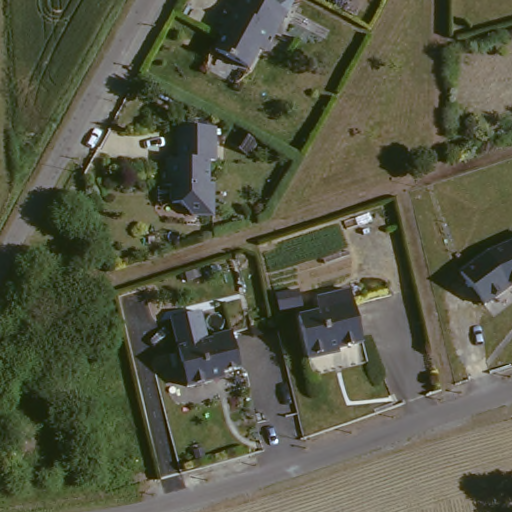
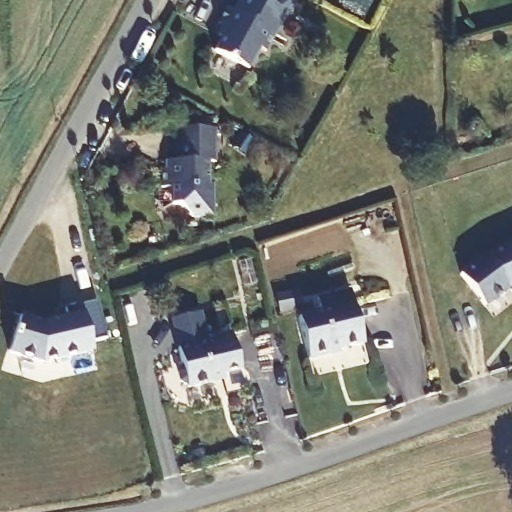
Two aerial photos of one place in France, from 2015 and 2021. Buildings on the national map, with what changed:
unchanged [(226,37),(221,35),(227,26),(223,23),(232,7),(239,11),(245,0),(270,0),(292,12),(270,52),(263,49),(250,71),(217,52),(226,37)]
unchanged [(184,201),(176,201),(175,184),(165,185),(164,166),(169,166),(169,159),(180,159),(179,127),(217,127),(218,160),(210,160),(211,181),(216,181),(217,212),(197,213),(184,201)]
unchanged [(487,253),(512,243),(512,285),(510,286),(487,306),(460,276),(487,253)]
unchanged [(300,318),(321,314),(317,300),(351,292),(363,345),(332,352),(333,356),(310,361),(300,318)]
new [(21,315),(42,322),(66,316),(65,310),(97,302),(106,340),(91,344),(92,352),(43,363),(7,353),(21,315)]
unchanged [(189,388),(189,386),(182,382),(180,372),(184,367),(180,349),(214,341),(213,339),(232,335),(241,370),(222,375),(215,383),(189,388)]

